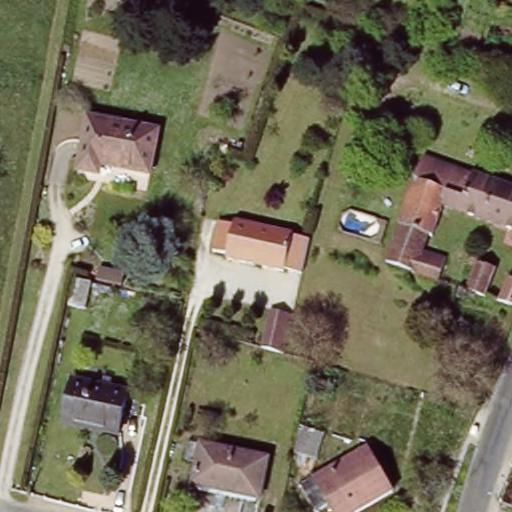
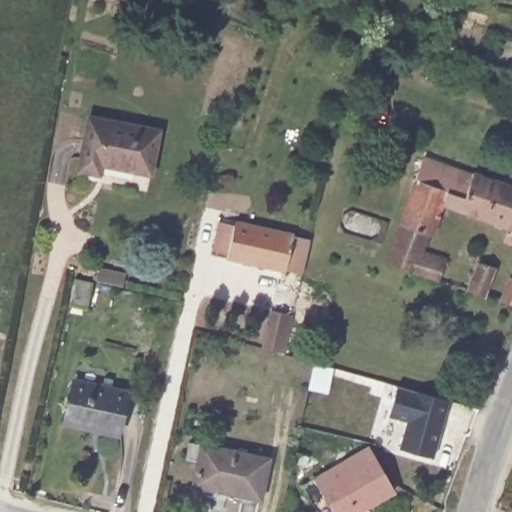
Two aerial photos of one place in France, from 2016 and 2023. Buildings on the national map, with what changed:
unchanged [(90,115),(160,130),(150,174),(102,162),(100,174),(78,169),(90,115)]
unchanged [(350,177),(359,144),(377,148),(367,182),(350,177)]
unchanged [(497,179),(485,217),(482,216),(477,224),(468,220),(471,212),(445,203),(433,233),(430,232),(424,248),(445,255),(437,276),(385,258),(422,154),(472,170),(497,179)]
unchanged [(512,184),(512,228),(491,220),(485,217),(497,179),(512,184)]
unchanged [(301,271),(226,254),(227,250),(214,246),(220,217),(236,220),(235,217),(309,234),(301,271)]
unchanged [(477,264),(494,270),(484,298),(467,292),(477,264)]
unchanged [(497,302),(507,279),(512,282),(512,308),(497,302)]
unchanged [(76,280),(92,284),(86,310),(70,307),(76,280)]
unchanged [(131,395),(122,435),(69,423),(77,383),(131,395)]
new [(450,402),(434,457),(399,447),(406,418),(385,412),(392,386),(450,402)]
unchanged [(299,430),(320,435),(315,457),(294,454),(299,430)]
unchanged [(269,449),(259,500),(192,486),(202,439),(219,442),(220,438),(269,449)]
unchanged [(393,489),(352,512),(335,512),(328,501),(315,508),(301,483),(369,445),(393,489)]

